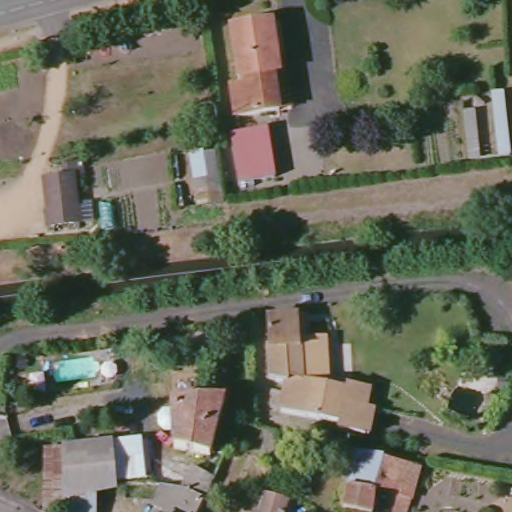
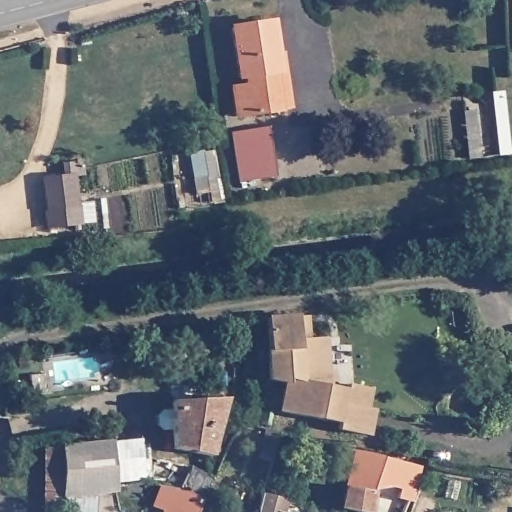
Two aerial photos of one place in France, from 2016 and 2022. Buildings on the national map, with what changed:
unchanged [(225,82),(237,81),(237,76),(232,72),(227,27),(269,22),(275,71),(271,72),(276,107),(230,115),(225,82)]
unchanged [(258,127),(265,177),(228,182),(222,132),(258,127)]
unchanged [(72,176),(77,225),(47,229),(40,180),(72,176)]
unchanged [(364,385),(360,404),(368,405),(363,431),(333,426),(335,419),(275,411),(279,381),(265,378),(262,343),(260,317),(274,317),(292,316),(293,338),(318,337),(322,383),(341,386),(342,381),(364,385)]
unchanged [(219,398),(207,458),(167,451),(174,392),(219,398)]
unchanged [(147,442),(147,486),(99,488),(101,443),(147,442)]
unchanged [(87,488),(86,512),(44,512),(38,510),(40,445),(55,445),(101,443),(99,488),(87,488)]
unchanged [(417,468),(405,512),(390,512),(393,498),(378,494),(372,512),(362,512),(343,507),(357,450),(417,468)]
unchanged [(161,507),(150,502),(155,478),(188,466),(200,470),(203,462),(215,467),(212,475),(195,512),(159,512),(161,507)]
unchanged [(292,500),(289,512),(254,512),(260,492),(292,500)]

